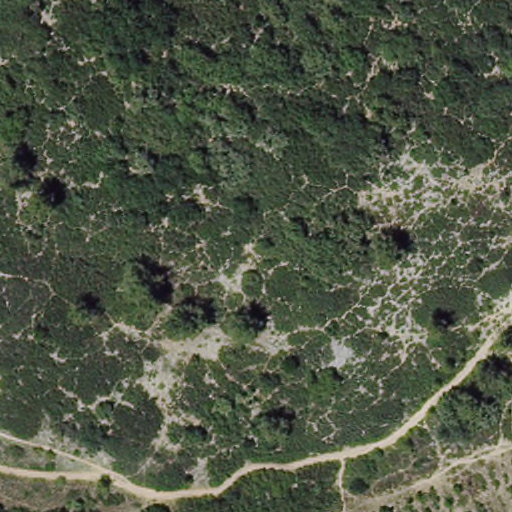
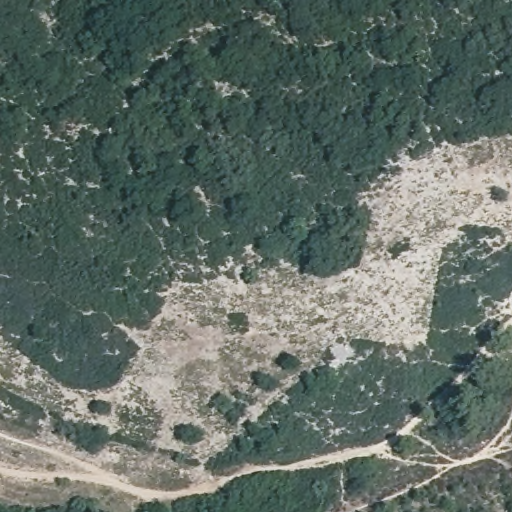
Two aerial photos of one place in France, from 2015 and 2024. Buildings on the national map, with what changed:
[]

